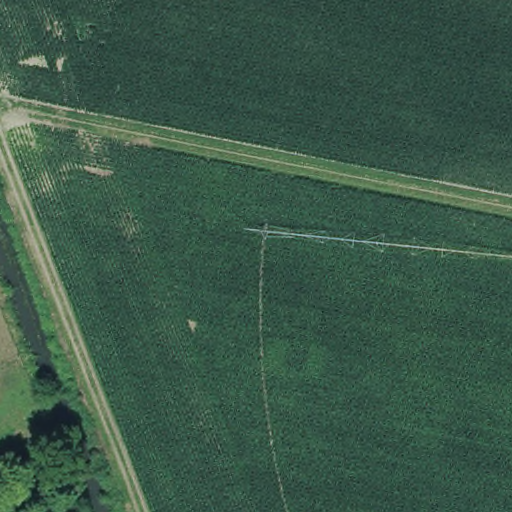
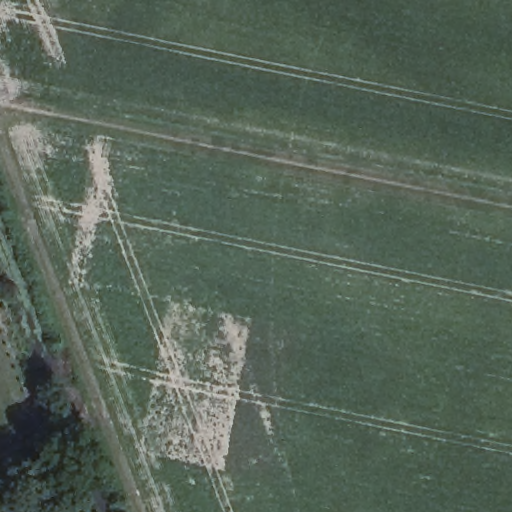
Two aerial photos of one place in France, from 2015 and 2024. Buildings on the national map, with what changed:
unchanged [(128,499),(133,512),(117,512),(114,504),(128,499)]

